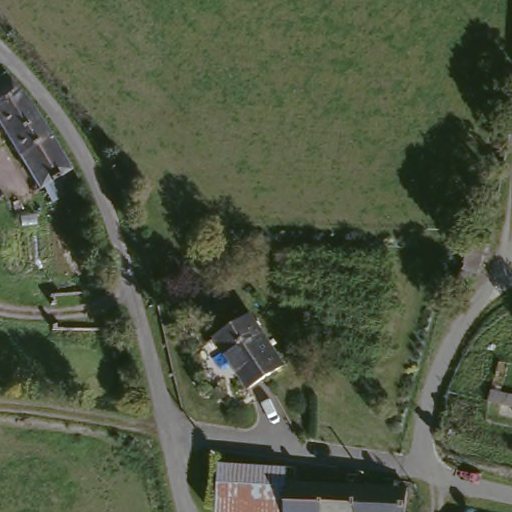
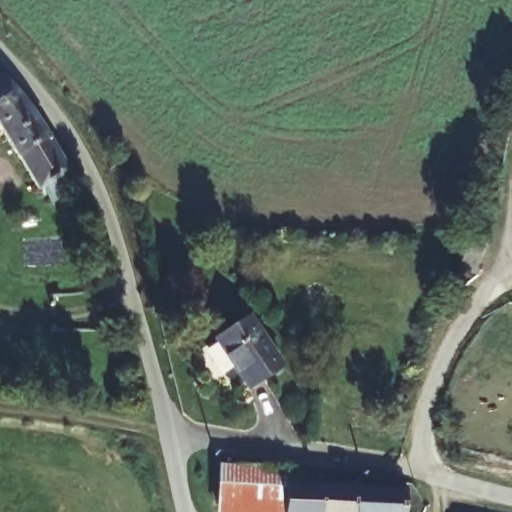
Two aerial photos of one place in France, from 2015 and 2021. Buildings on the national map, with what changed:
unchanged [(0,77),(4,74),(45,136),(16,154),(0,130),(0,77)]
unchanged [(66,169),(36,187),(16,154),(45,136),(66,169)]
unchanged [(244,320),(275,369),(242,391),(212,341),(244,320)]
unchanged [(278,512),(258,512),(210,509),(211,472),(279,474),(278,488),(278,512)]
unchanged [(278,488),(349,491),(348,512),(278,512),(278,488)]
unchanged [(399,493),(399,512),(348,512),(349,491),(399,493)]

